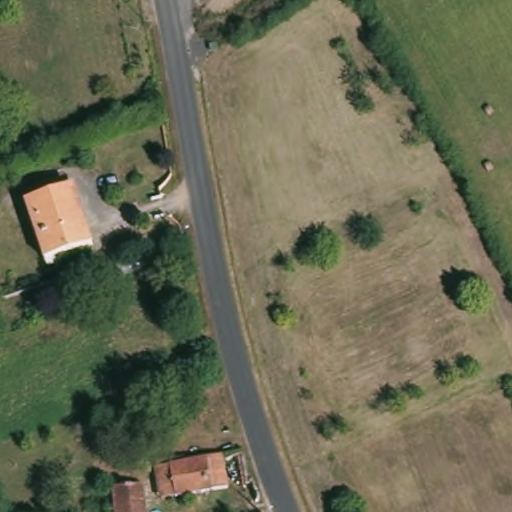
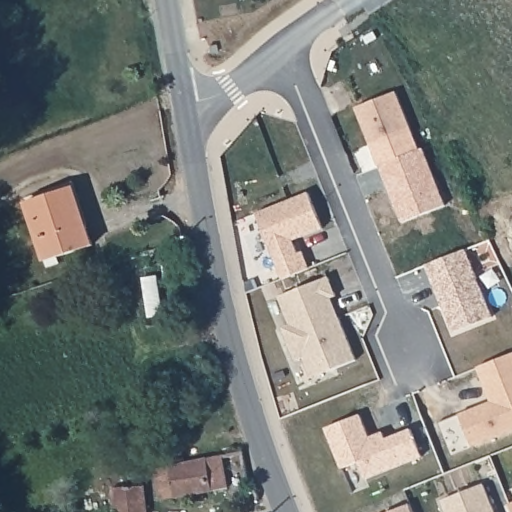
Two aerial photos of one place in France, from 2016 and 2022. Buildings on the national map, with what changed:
new [(356,108),(396,92),(411,127),(370,142),(356,108)]
unchanged [(65,188),(77,227),(84,226),(89,246),(43,262),(24,202),(65,188)]
new [(257,213),(309,192),(324,228),(294,239),(299,254),(304,252),(310,267),(282,278),(257,213)]
new [(427,265),(467,249),(493,318),(454,333),(427,265)]
new [(283,327),(291,324),(279,297),(330,277),(337,294),(331,297),(357,359),(313,377),(303,356),(296,359),(283,327)]
new [(491,401),(479,367),(512,354),(512,431),(474,447),(460,415),(491,401)]
new [(367,478),(359,460),(342,468),(326,428),(360,415),(370,437),(384,432),(386,438),(410,429),(421,457),(367,478)]
unchanged [(226,485),(166,501),(160,471),(218,453),(226,485)]
unchanged [(110,489),(149,483),(151,512),(112,512),(110,489)]
new [(442,501),(484,485),(496,512),(446,512),(442,501)]
new [(410,505),(413,512),(390,512),(410,505)]

